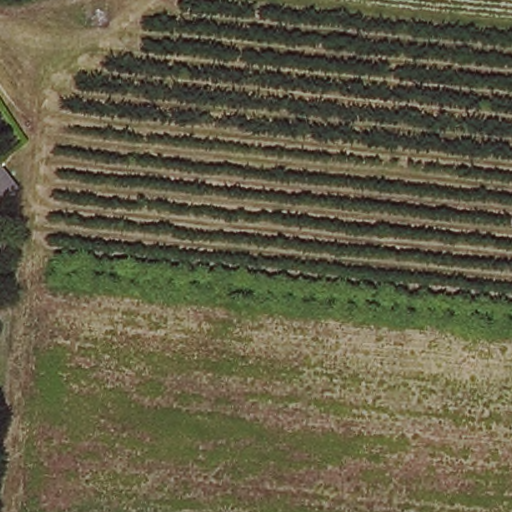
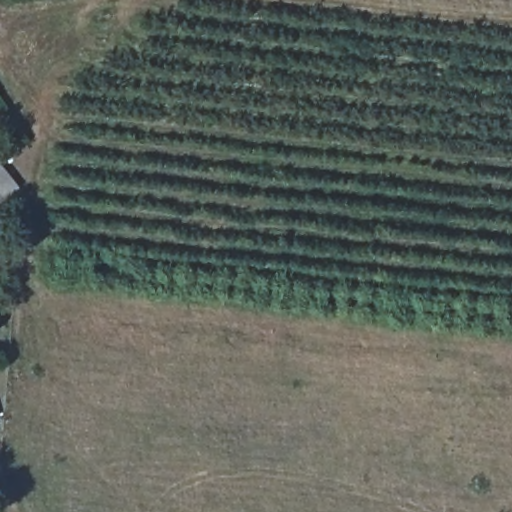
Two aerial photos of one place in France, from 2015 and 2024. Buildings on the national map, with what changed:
unchanged [(23,187),(0,205),(0,164),(3,162),(23,187)]

